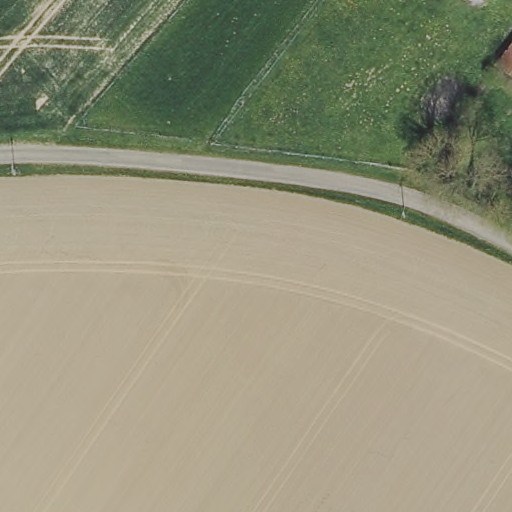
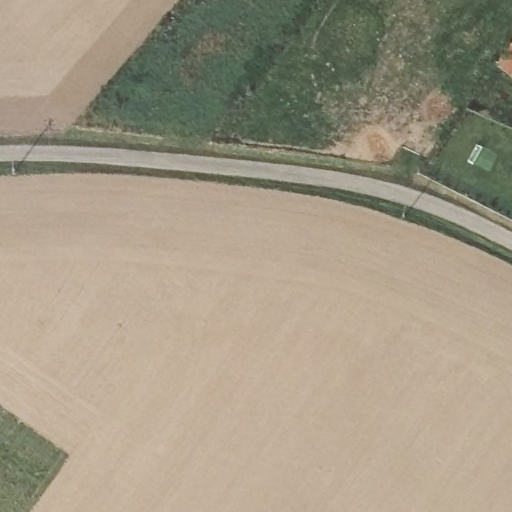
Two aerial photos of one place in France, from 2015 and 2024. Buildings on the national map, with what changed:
unchanged [(512,37),(512,79),(492,63),(509,41),(512,37)]

